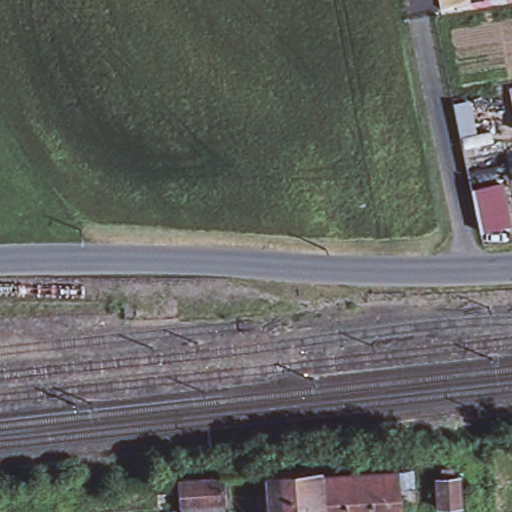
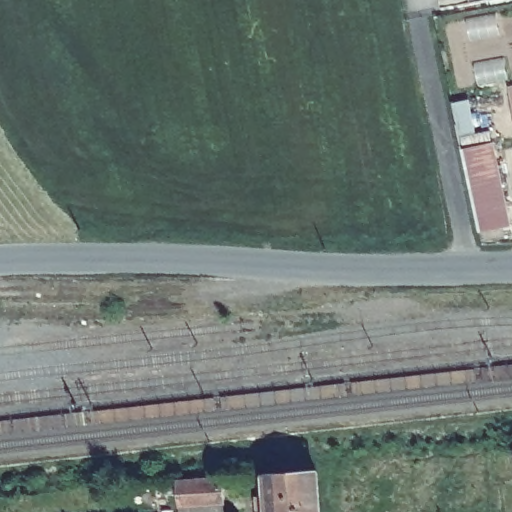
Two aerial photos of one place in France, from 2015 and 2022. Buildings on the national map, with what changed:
unchanged [(512,92),(512,99),(510,92),(512,92)]
unchanged [(467,99),(474,134),(490,131),(492,142),(461,149),(451,102),(467,99)]
demolished [(441,470),(450,470),(451,476),(457,476),(459,506),(452,507),(453,512),(444,512),(444,507),(438,507),(436,477),(442,477),(441,470)]
unchanged [(317,476),(320,512),(269,512),(267,473),(317,471),(317,476)]
demolished [(395,472),(397,512),(320,512),(317,476),(355,474),(395,472)]
unchanged [(225,512),(184,512),(182,482),(222,479),(225,512)]

